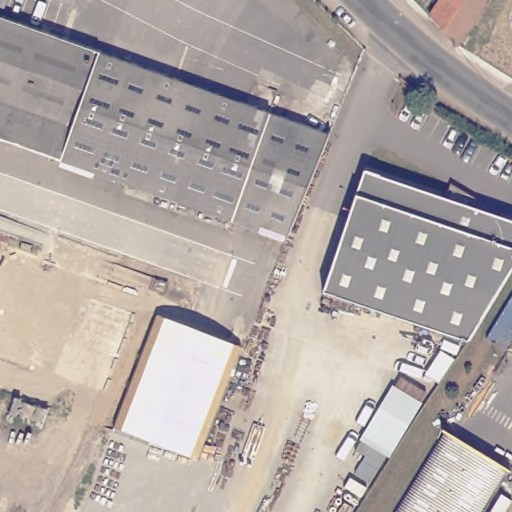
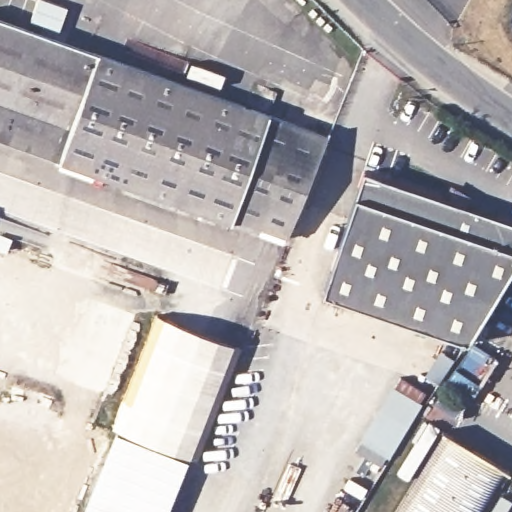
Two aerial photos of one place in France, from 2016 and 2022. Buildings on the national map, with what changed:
demolished [(457,43),(455,46),(428,15),(439,0),(486,0),(457,43)]
unchanged [(0,139),(0,20),(328,136),(286,241),(0,139)]
unchanged [(366,172),(446,203),(449,196),(463,204),(461,209),(512,229),(512,267),(462,348),(319,293),(366,172)]
unchanged [(118,430),(163,317),(231,344),(191,457),(118,430)]
new [(191,457),(168,512),(84,512),(118,430),(191,457)]
unchanged [(506,471),(481,512),(395,512),(443,432),(506,471)]

